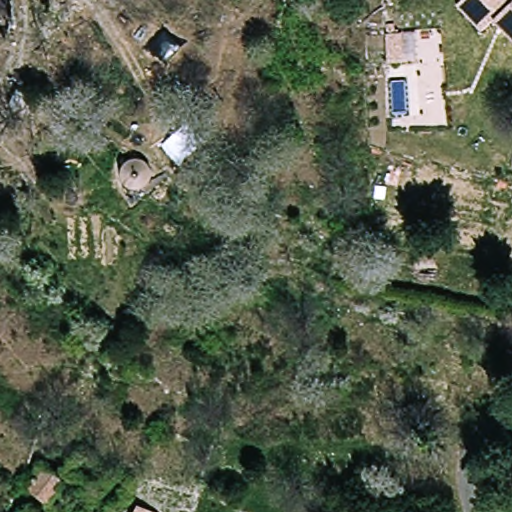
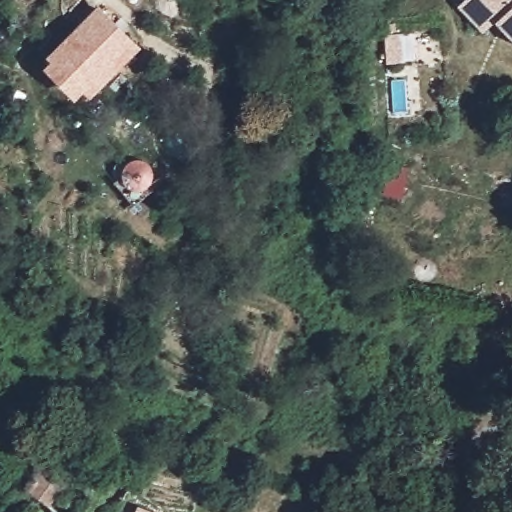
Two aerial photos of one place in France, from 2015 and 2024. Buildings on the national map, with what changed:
unchanged [(494,21),(481,30),(460,0),(512,0),(512,45),(494,21)]
new [(81,92),(73,100),(42,67),(49,61),(45,57),(98,6),(133,42),(141,50),(89,100),(81,92)]
unchanged [(88,443),(120,462),(102,491),(72,471),(88,443)]
unchanged [(42,502),(24,486),(38,465),(55,477),(60,481),(54,488),(69,504),(61,512),(52,512),(42,502)]
unchanged [(135,497),(159,508),(157,512),(129,512),(135,497)]

